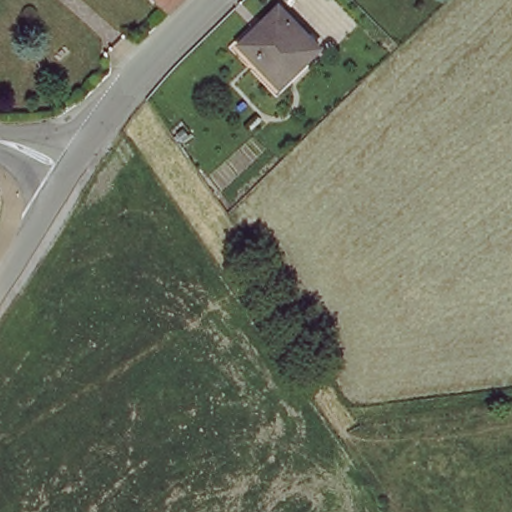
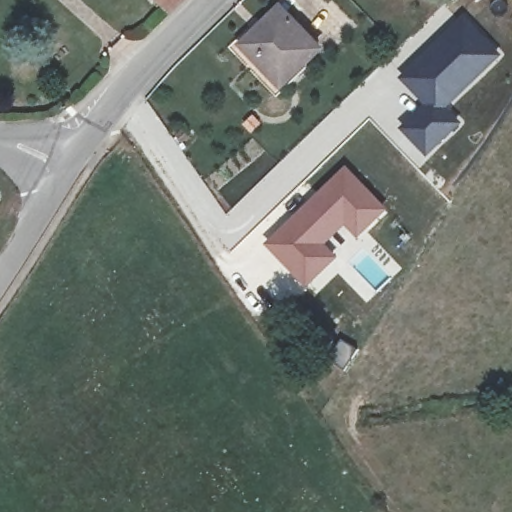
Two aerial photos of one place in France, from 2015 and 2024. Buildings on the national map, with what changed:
unchanged [(157,0),(185,0),(170,15),(157,0)]
unchanged [(279,94),(238,48),(286,4),(325,48),(310,61),(314,65),(279,94)]
new [(464,18),(498,55),(473,77),(456,63),(435,82),(451,98),(440,108),(454,123),(425,153),(402,129),(425,104),(402,79),(464,18)]
new [(346,167),(386,211),(356,240),(343,227),(325,245),(337,256),(305,289),(262,245),(346,167)]

